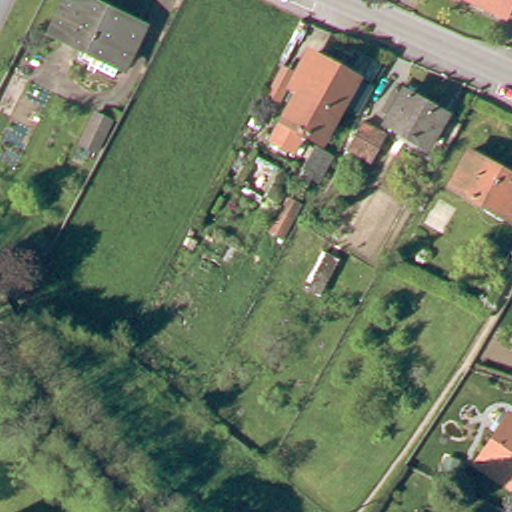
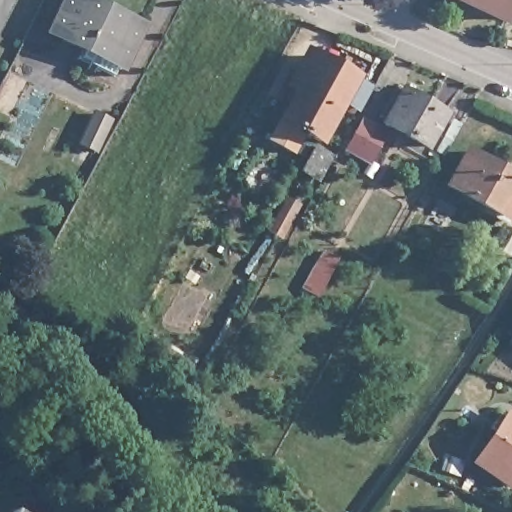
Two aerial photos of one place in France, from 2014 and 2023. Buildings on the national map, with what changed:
unchanged [(78,61),(83,50),(52,36),(69,0),(84,0),(117,16),(114,21),(138,33),(120,69),(118,67),(112,78),(110,76),(78,61)]
unchanged [(451,0),(512,0),(512,11),(505,25),(451,0)]
unchanged [(291,132),(287,139),(281,151),(260,140),(266,128),(303,56),(345,76),(342,80),(358,89),(347,111),(330,103),(310,142),(291,132)]
unchanged [(402,95),(443,118),(426,150),(385,127),(402,95)]
unchanged [(77,144),(91,115),(108,124),(95,153),(77,144)]
unchanged [(360,122),(382,134),(367,161),(345,148),(360,122)]
unchanged [(291,169),(302,147),(317,155),(307,177),(291,169)]
unchanged [(512,185),(512,211),(504,225),(450,193),(468,160),(512,185)]
unchanged [(289,198),(300,204),(283,235),(272,229),(289,198)]
unchanged [(326,254),(337,260),(326,279),(315,273),(326,254)]
unchanged [(512,424),(512,492),(478,469),(510,423),(512,424)]

